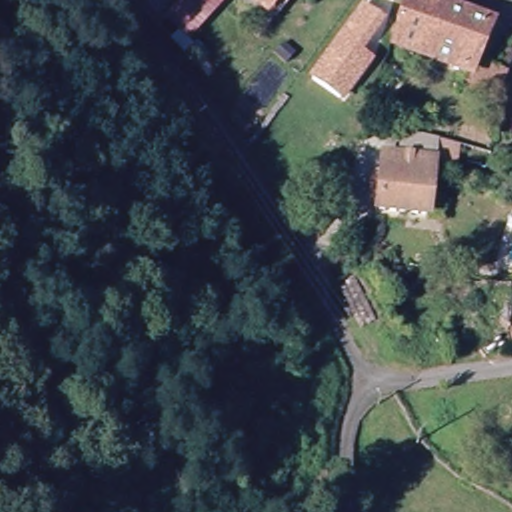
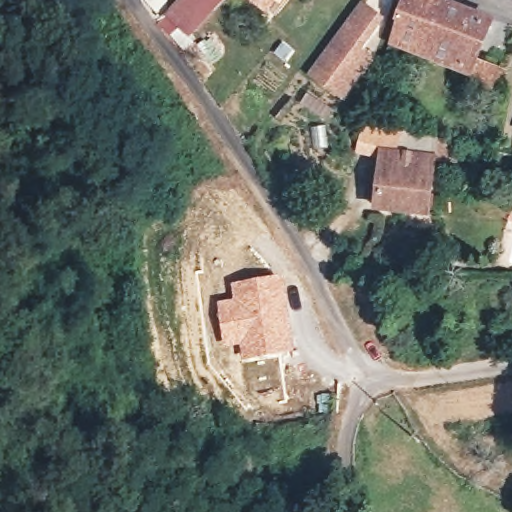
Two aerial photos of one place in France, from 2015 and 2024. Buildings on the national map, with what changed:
unchanged [(196,33),(175,13),(188,0),(228,0),(196,33)]
unchanged [(272,5),(269,9),(257,0),(276,0),(272,5)]
unchanged [(455,86),(459,74),(456,73),(383,43),(392,23),(389,23),(399,0),(426,0),(479,21),(465,60),(496,73),(493,82),(487,97),(455,86)]
unchanged [(324,53),(358,8),(375,21),(351,52),(362,60),(342,87),(334,98),(306,77),(324,53)]
unchanged [(406,161),(408,135),(463,148),(461,166),(439,164),(406,161)]
unchanged [(384,214),(385,203),(375,202),(377,178),(387,179),(388,173),(390,173),(392,159),(406,161),(439,164),(434,219),(384,214)]
new [(233,297),(230,282),(284,275),(296,350),(242,360),(239,344),(223,345),(216,300),(233,297)]
unchanged [(467,314),(471,279),(497,282),(492,327),(489,346),(461,346),(462,331),(463,318),(467,314)]
unchanged [(497,282),(512,284),(512,330),(492,327),(497,282)]

